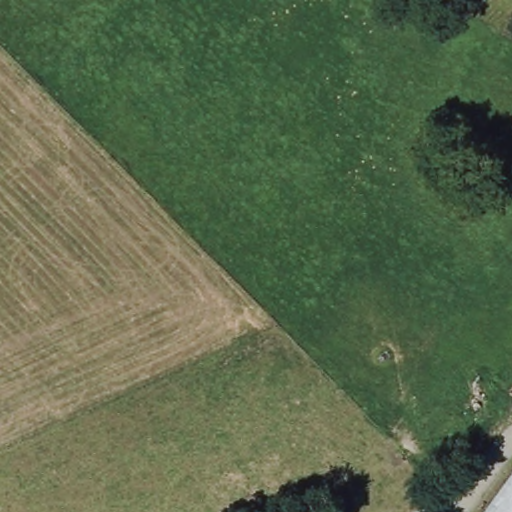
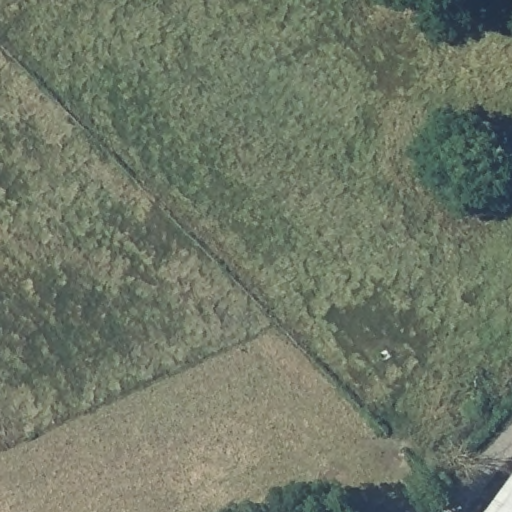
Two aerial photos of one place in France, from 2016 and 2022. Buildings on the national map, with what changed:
unchanged [(512,512),(482,512),(512,472),(512,512)]

